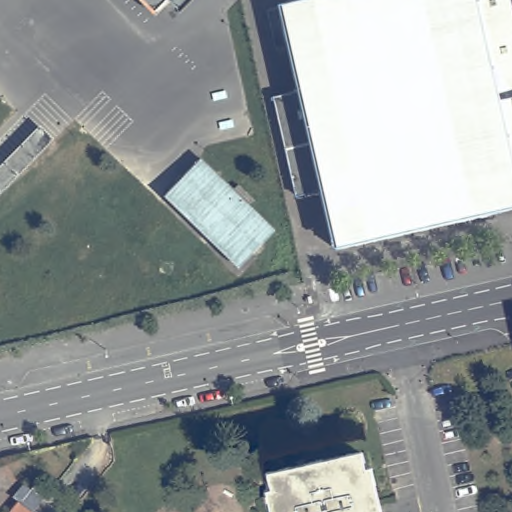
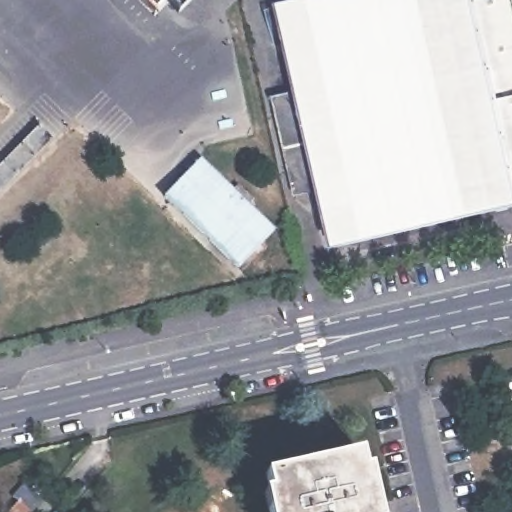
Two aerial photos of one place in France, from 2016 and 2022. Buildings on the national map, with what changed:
unchanged [(157,15),(142,0),(167,0),(170,3),(157,15)]
unchanged [(170,3),(167,0),(198,0),(182,15),(170,3)]
unchanged [(275,95),(300,90),(279,5),(303,0),(478,0),(512,0),(512,205),(337,246),(322,185),(297,192),(275,95)]
unchanged [(56,136),(0,194),(0,163),(42,121),(56,136)]
unchanged [(243,270),(170,199),(207,162),(279,233),(243,270)]
unchanged [(371,474),(380,512),(269,512),(266,499),(270,497),(267,480),(361,458),(365,476),(371,474)]
unchanged [(18,500),(12,495),(24,481),(31,487),(36,480),(50,491),(35,512),(9,512),(18,500)]

